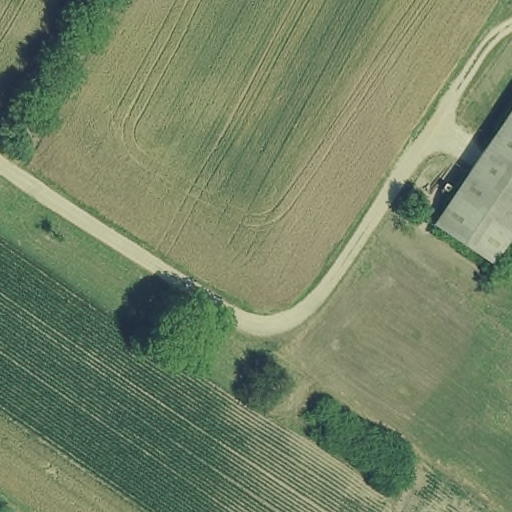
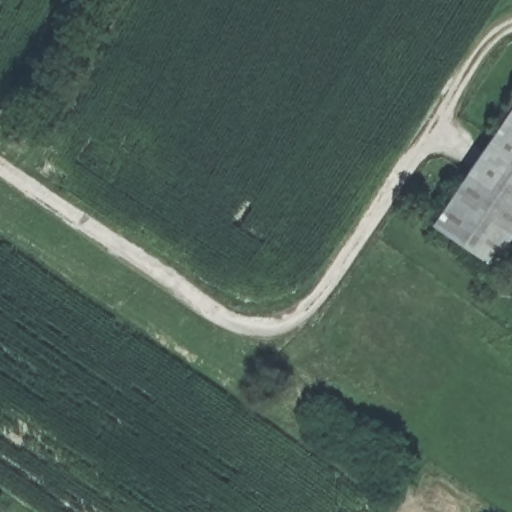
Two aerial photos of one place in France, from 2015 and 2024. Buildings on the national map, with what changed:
unchanged [(512,109),(512,233),(490,265),(433,226),(512,109)]

